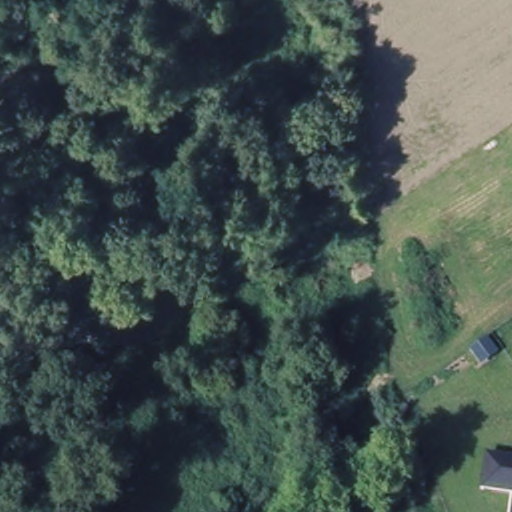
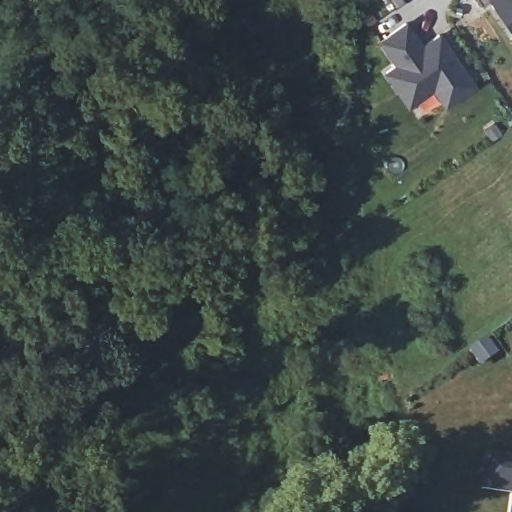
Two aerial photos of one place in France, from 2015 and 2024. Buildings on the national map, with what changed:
new [(404,1),(395,8),(389,0),(404,0),(404,1)]
new [(512,34),(492,4),(483,11),(475,0),(512,0),(512,34)]
new [(402,95),(387,75),(399,68),(382,44),(407,26),(418,43),(415,46),(420,53),(441,38),(475,88),(447,108),(434,90),(425,97),(410,108),(402,95)]
unchanged [(486,455),(512,458),(512,491),(483,487),(486,455)]

